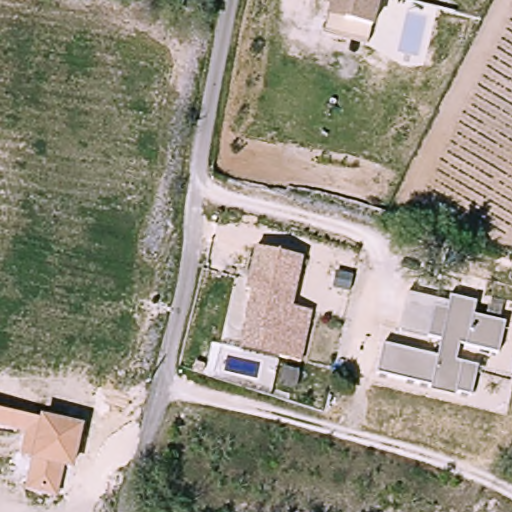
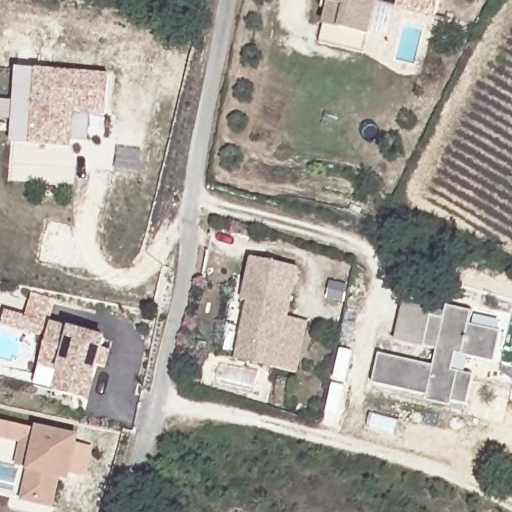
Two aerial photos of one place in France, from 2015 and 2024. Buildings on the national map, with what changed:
unchanged [(328,0),(377,0),(364,38),(338,29),(343,7),(327,2),(328,0)]
new [(396,8),(398,0),(440,0),(437,19),(396,8)]
unchanged [(359,54),(315,40),(327,2),(343,7),(338,29),(364,38),(359,54)]
new [(35,69),(109,74),(107,116),(91,115),(88,142),(72,141),(71,149),(28,146),(10,144),(17,69),(35,69)]
unchanged [(253,301),(247,300),(250,288),(259,256),(303,269),(291,318),(310,325),(296,375),(274,368),(236,357),(242,336),(253,301)]
unchanged [(449,311),(448,317),(434,315),(427,345),(399,338),(408,300),(449,311)]
unchanged [(451,302),(478,309),(475,325),(505,333),(498,362),(458,353),(456,370),(475,376),(468,406),(374,382),(381,351),(436,366),(440,347),(427,345),(434,315),(448,317),(449,311),(451,302)]
new [(45,334),(2,323),(5,310),(48,321),(45,334)]
new [(104,350),(111,351),(106,367),(99,366),(94,380),(90,401),(53,392),(58,371),(40,367),(50,323),(70,330),(106,338),(104,350)]
unchanged [(53,508),(22,501),(27,472),(27,470),(17,466),(21,443),(0,439),(0,423),(35,431),(37,427),(80,436),(70,482),(60,480),(53,508)]

